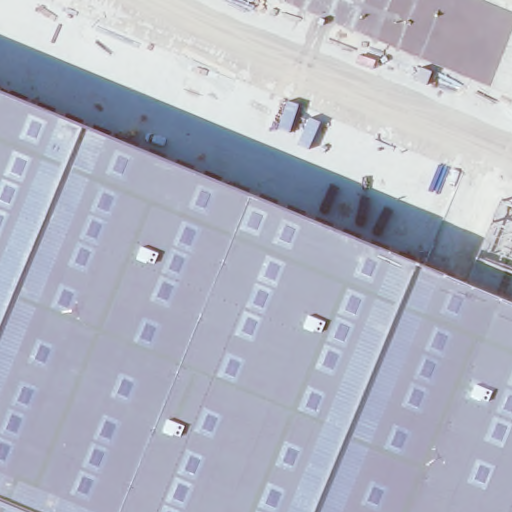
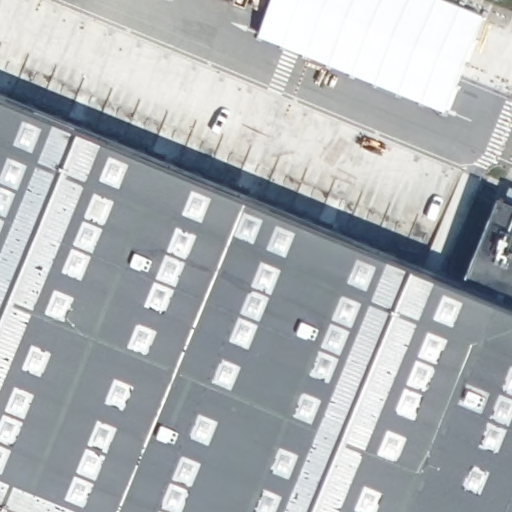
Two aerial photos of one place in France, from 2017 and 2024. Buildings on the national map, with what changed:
new [(447,109),(259,34),(274,0),(450,0),(484,14),(447,109)]
unchanged [(512,302),(512,512),(0,512),(0,91),(467,283),(512,302)]
unchanged [(501,201),(512,206),(512,302),(467,283),(501,201)]

